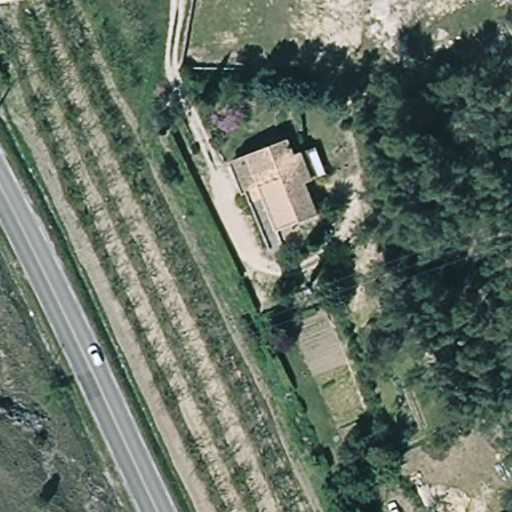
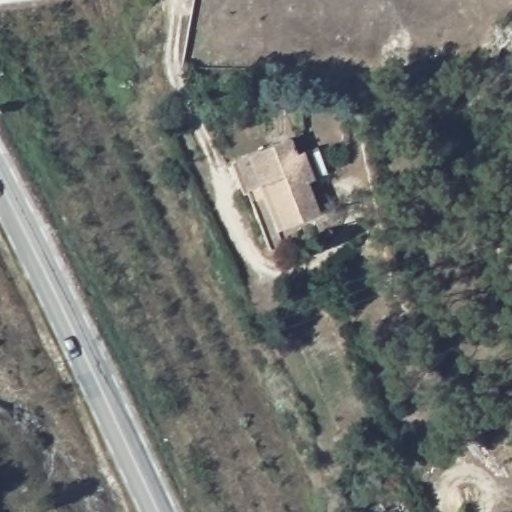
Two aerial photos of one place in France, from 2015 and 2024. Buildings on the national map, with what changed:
unchanged [(282,140),(290,158),(304,152),(315,178),(300,185),(315,216),(270,235),(252,190),(239,195),(226,166),(282,140)]

